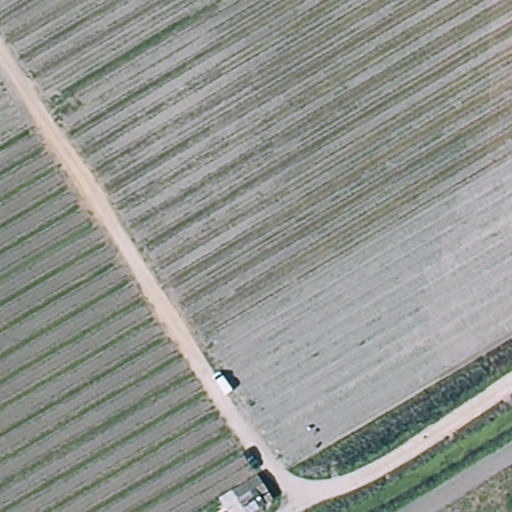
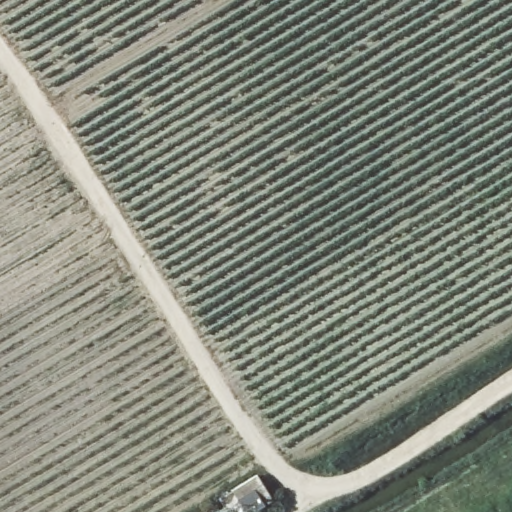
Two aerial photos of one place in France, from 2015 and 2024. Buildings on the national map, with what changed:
unchanged [(271,504),(257,512),(242,512),(231,495),(256,479),(271,504)]

